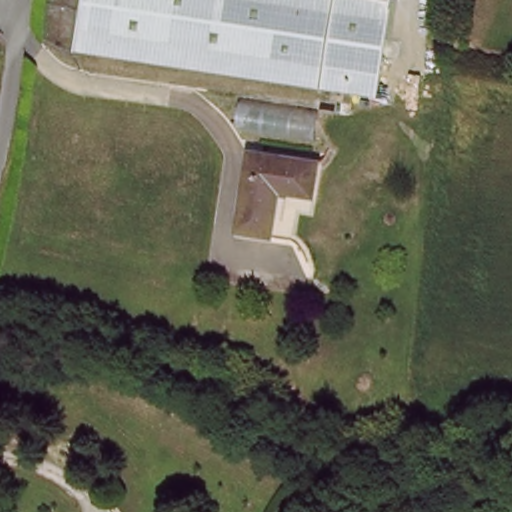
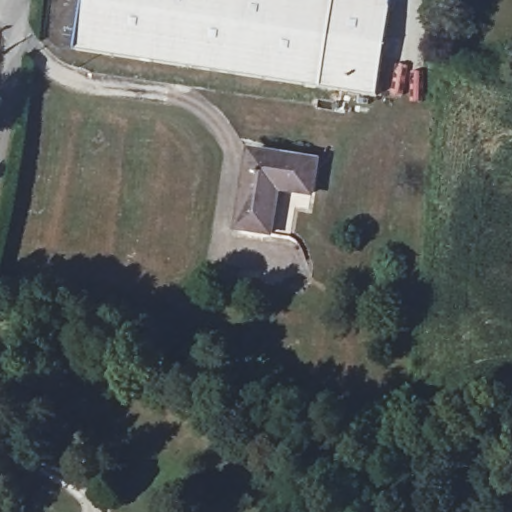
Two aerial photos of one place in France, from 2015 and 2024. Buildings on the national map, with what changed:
unchanged [(392,0),(374,104),(72,47),(80,0),(392,0)]
unchanged [(246,149),(311,164),(302,209),(289,207),(282,240),(229,229),(246,149)]
unchanged [(418,492),(437,500),(433,508),(443,512),(421,512),(412,508),(418,492)]

